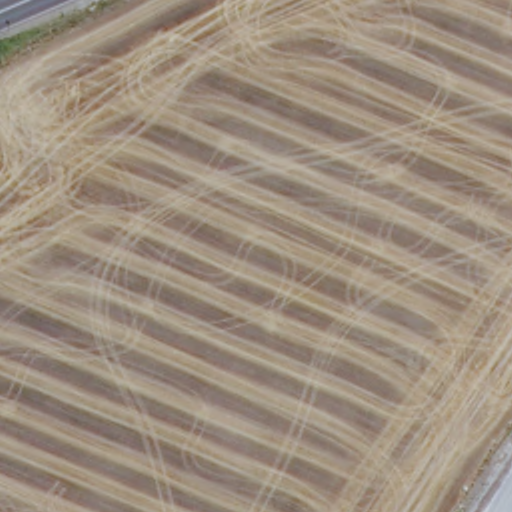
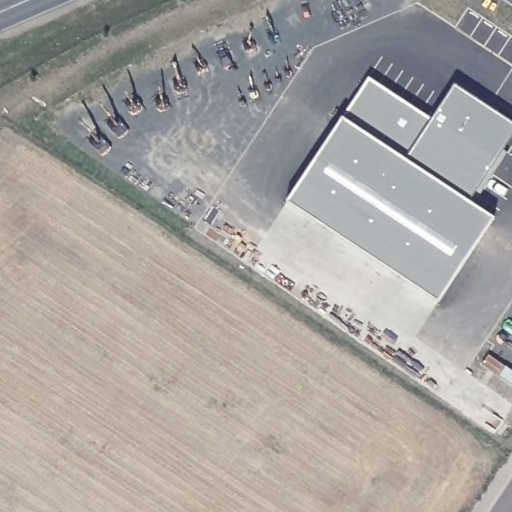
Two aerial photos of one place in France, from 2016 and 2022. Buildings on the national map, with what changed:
new [(369,80),(432,121),(455,86),(512,124),(512,140),(470,204),(495,220),(440,305),(287,205),(369,80)]

